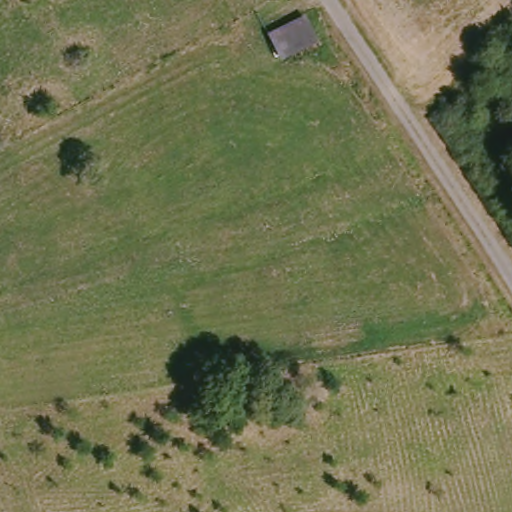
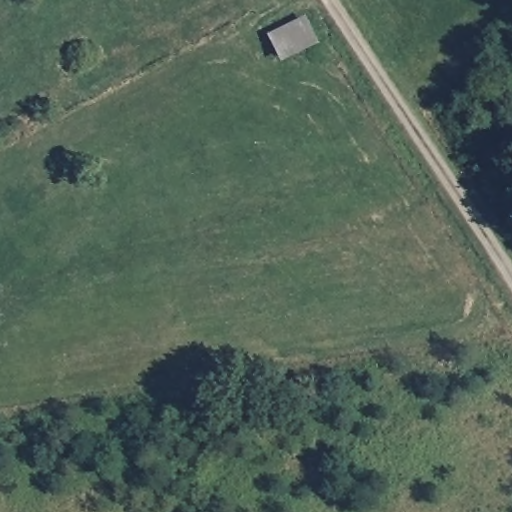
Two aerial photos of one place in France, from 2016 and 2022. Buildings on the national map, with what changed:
unchanged [(272,37),(309,18),(323,46),(285,63),(272,37)]

